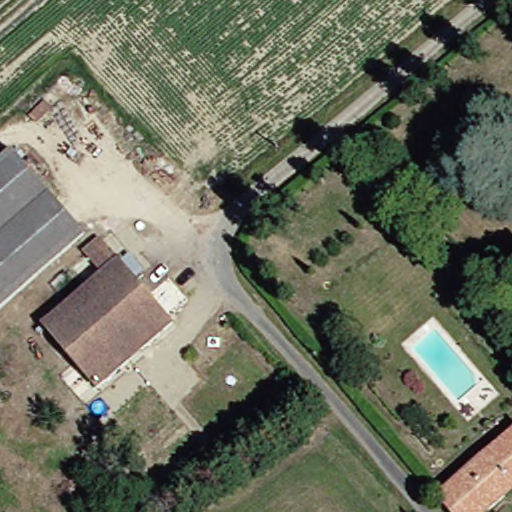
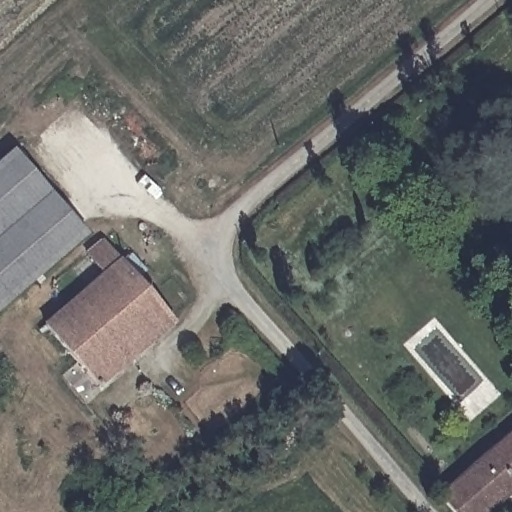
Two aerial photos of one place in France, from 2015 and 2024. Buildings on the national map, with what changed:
unchanged [(21,149),(63,197),(0,252),(0,168),(21,149)]
unchanged [(95,233),(0,317),(0,252),(63,197),(95,233)]
unchanged [(113,271),(96,251),(113,236),(180,320),(106,383),(60,330),(54,336),(47,328),(113,271)]
unchanged [(512,502),(498,512),(458,512),(444,496),(512,441),(512,502)]

